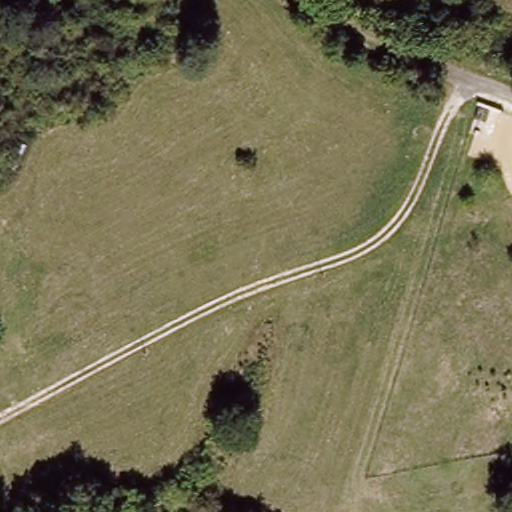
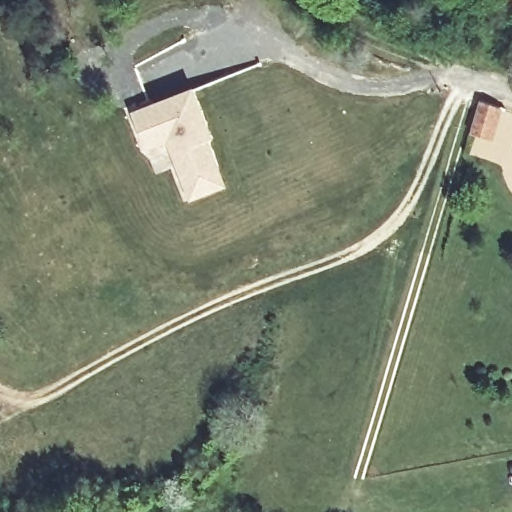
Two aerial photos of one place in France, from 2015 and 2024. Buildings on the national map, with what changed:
new [(189,195),(180,173),(166,138),(146,145),(133,110),(190,87),(204,122),(209,134),(204,136),(214,159),(223,182),(189,195)]

